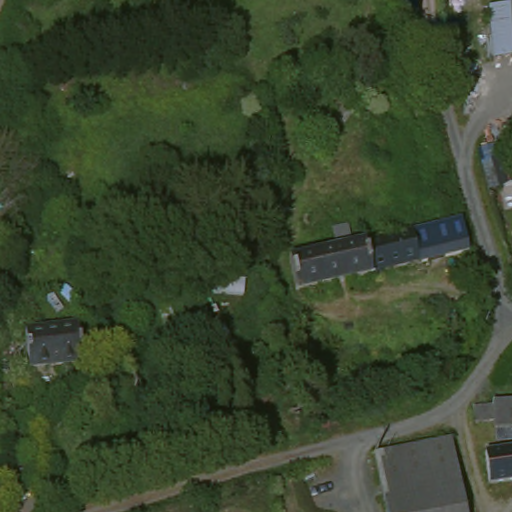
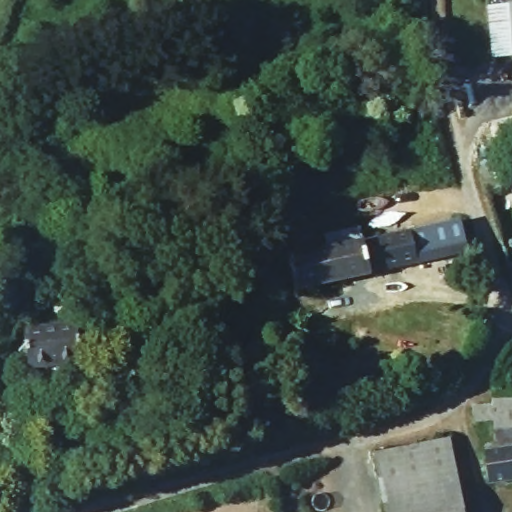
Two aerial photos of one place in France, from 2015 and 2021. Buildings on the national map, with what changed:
unchanged [(512,7),(512,56),(497,57),(491,10),(512,7)]
unchanged [(323,230),(345,225),(349,243),(352,242),(419,226),(446,221),(453,253),(293,290),(286,258),(286,256),(326,247),(323,230)]
unchanged [(18,330),(76,330),(75,366),(19,366),(18,330)]
unchanged [(496,394),(512,399),(512,434),(486,427),(490,416),(469,410),(476,392),(495,398),(496,394)]
unchanged [(388,512),(377,471),(374,461),(451,437),(458,475),(464,512),(388,512)]
unchanged [(512,443),(512,475),(468,471),(472,440),(512,443)]

